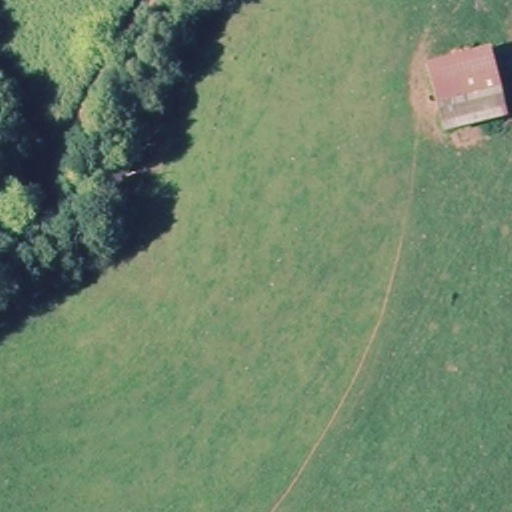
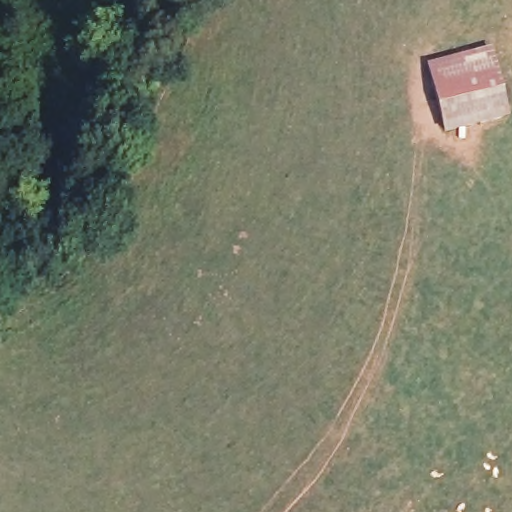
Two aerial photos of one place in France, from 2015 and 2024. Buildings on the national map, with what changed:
unchanged [(504,111),(501,116),(439,131),(423,73),(489,55),(504,111)]

